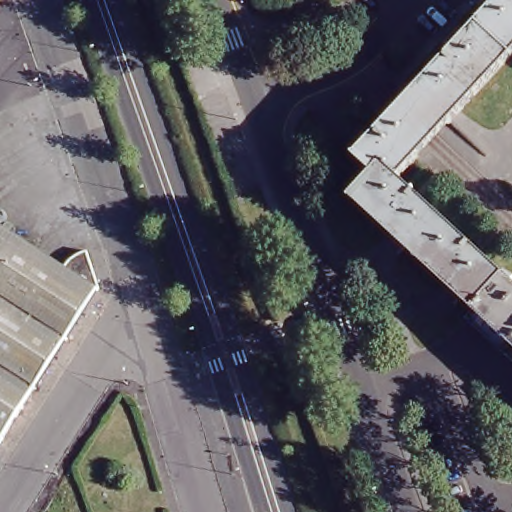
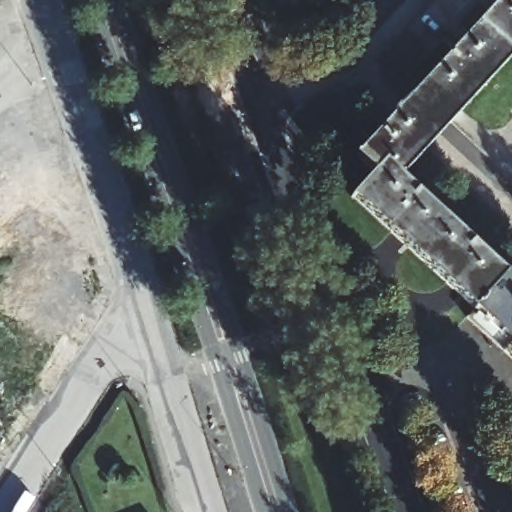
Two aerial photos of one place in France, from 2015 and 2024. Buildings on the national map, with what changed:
demolished [(4,0),(8,12),(0,25),(0,0),(4,0)]
unchanged [(512,0),(512,45),(450,112),(417,81),(491,0),(512,0)]
demolished [(10,44),(0,60),(0,36),(10,44)]
unchanged [(417,81),(450,112),(415,150),(382,119),(417,81)]
unchanged [(415,150),(394,175),(379,161),(370,170),(352,152),(382,119),(415,150)]
unchanged [(350,194),(367,175),(370,170),(379,161),(394,175),(493,265),(464,298),(350,194)]
demolished [(65,262),(72,252),(74,250),(76,249),(79,249),(82,247),(86,248),(92,247),(101,283),(78,320),(10,426),(4,436),(0,434),(0,221),(65,262)]
unchanged [(500,271),(502,268),(510,276),(510,280),(512,282),(512,332),(499,346),(462,313),(470,303),(464,298),(493,265),(500,271)]
unchanged [(512,359),(499,346),(512,332),(512,359)]
demolished [(0,442),(0,434),(4,436),(0,442)]

